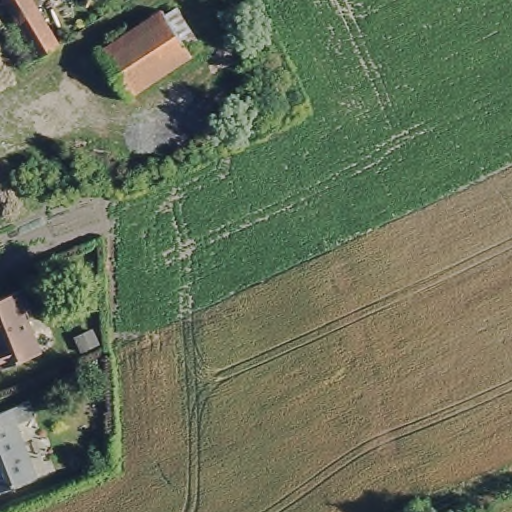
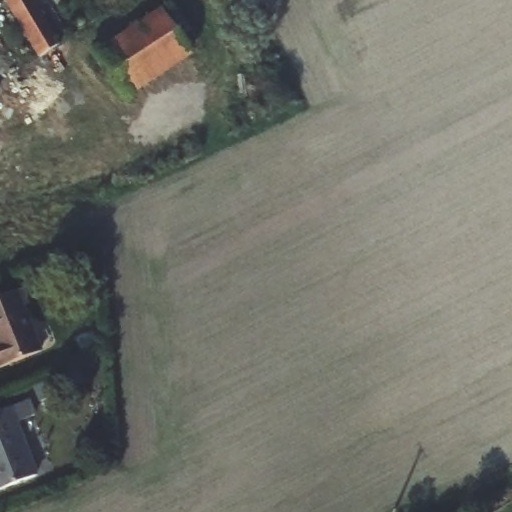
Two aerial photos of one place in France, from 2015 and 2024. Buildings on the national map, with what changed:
unchanged [(4,0),(33,0),(59,44),(37,56),(4,0)]
unchanged [(188,56),(123,97),(96,52),(163,12),(188,56)]
unchanged [(22,306),(42,353),(0,371),(0,293),(19,285),(27,305),(22,306)]
unchanged [(18,428),(35,466),(0,482),(0,411),(15,405),(23,426),(18,428)]

